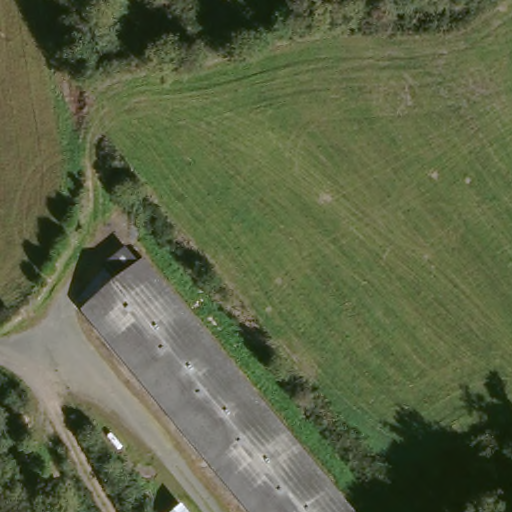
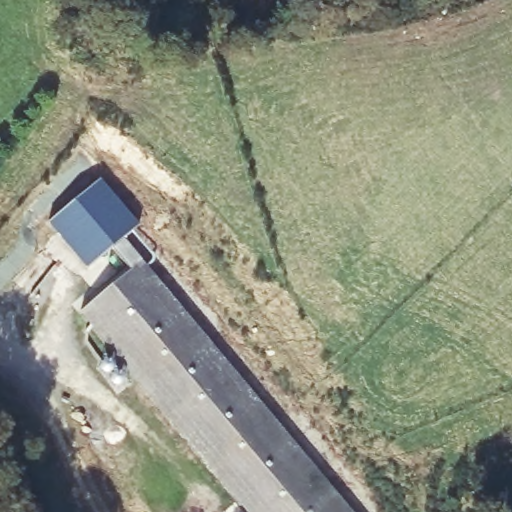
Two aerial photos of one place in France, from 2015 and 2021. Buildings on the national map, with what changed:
new [(128,267),(112,248),(89,266),(48,221),(103,175),(141,220),(126,234),(141,257),(137,260),(128,267)]
unchanged [(137,260),(355,512),(251,512),(76,310),(137,260)]
demolished [(200,512),(175,512),(191,501),(200,512)]

